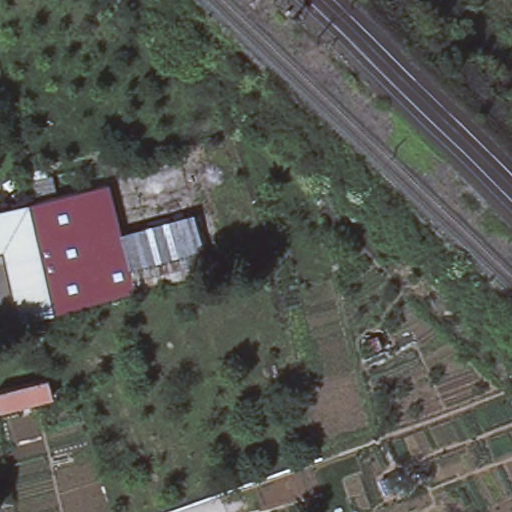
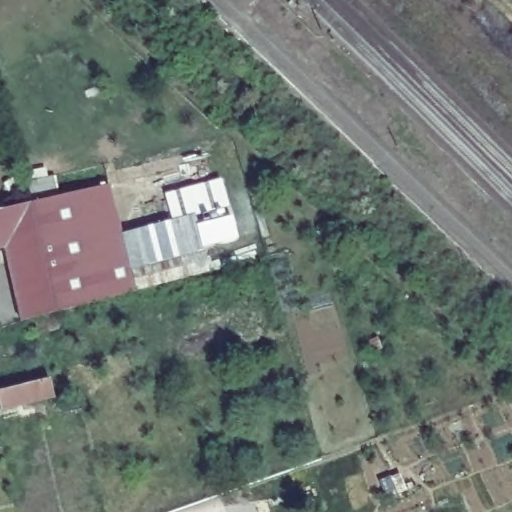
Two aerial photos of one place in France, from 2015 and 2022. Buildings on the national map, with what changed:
unchanged [(25,177),(46,173),(51,193),(109,179),(121,230),(135,286),(55,308),(20,317),(4,245),(0,246),(0,204),(30,198),(25,177)]
unchanged [(200,214),(212,266),(135,286),(121,230),(200,214)]
unchanged [(53,396),(0,409),(0,391),(49,378),(53,396)]

